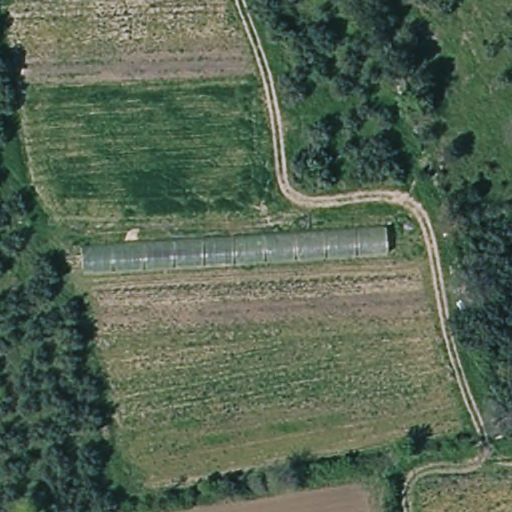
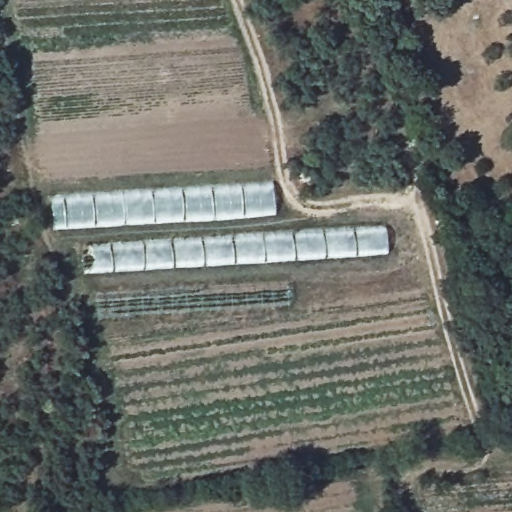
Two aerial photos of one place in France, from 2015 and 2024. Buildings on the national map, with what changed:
new [(52,231),(50,200),(275,186),(277,217),(52,231)]
unchanged [(84,271),(82,247),(385,229),(387,251),(84,271)]

